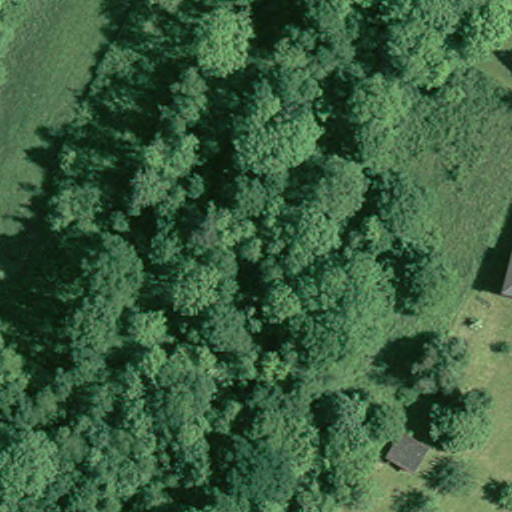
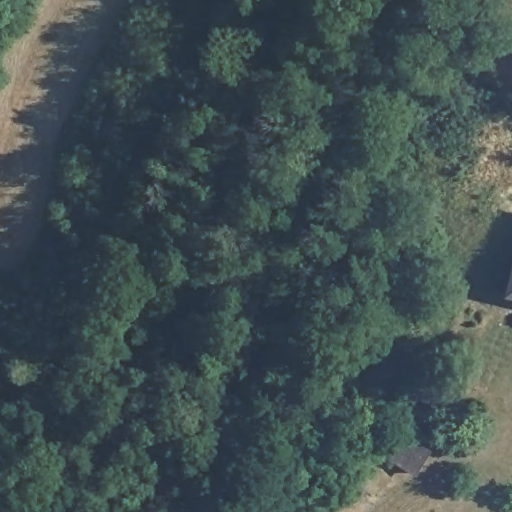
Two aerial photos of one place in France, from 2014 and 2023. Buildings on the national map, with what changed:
unchanged [(507,300),(512,280),(512,301),(507,300)]
unchanged [(428,452),(414,474),(390,458),(403,436),(428,452)]

